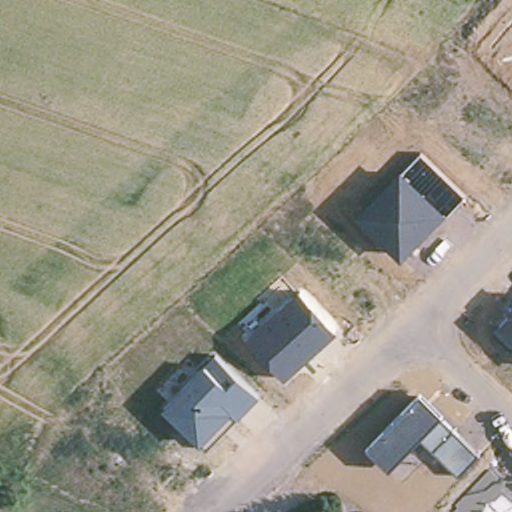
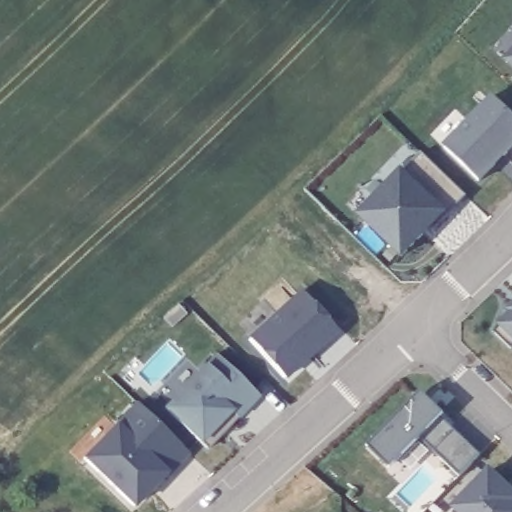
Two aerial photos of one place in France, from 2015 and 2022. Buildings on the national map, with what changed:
new [(512,51),(512,68),(503,61),(512,51)]
new [(481,182),(443,146),(492,96),(512,115),(512,149),(481,182)]
unchanged [(358,214),(402,170),(422,153),(466,196),(447,213),(402,258),(358,214)]
unchanged [(249,336),(300,290),(339,333),(285,379),(249,336)]
new [(178,305),(187,315),(172,328),(163,319),(178,305)]
unchanged [(510,314),(507,311),(512,306),(512,339),(498,325),(510,314)]
unchanged [(208,450),(165,409),(217,356),(259,397),(238,419),(224,433),(208,450)]
unchanged [(367,446),(420,394),(443,416),(441,418),(479,454),(460,474),(420,437),(390,468),(367,446)]
new [(190,454),(169,477),(168,472),(134,510),(81,458),(116,422),(118,423),(136,404),(190,454)]
new [(455,512),(451,508),(488,468),(512,490),(512,512),(455,512)]

